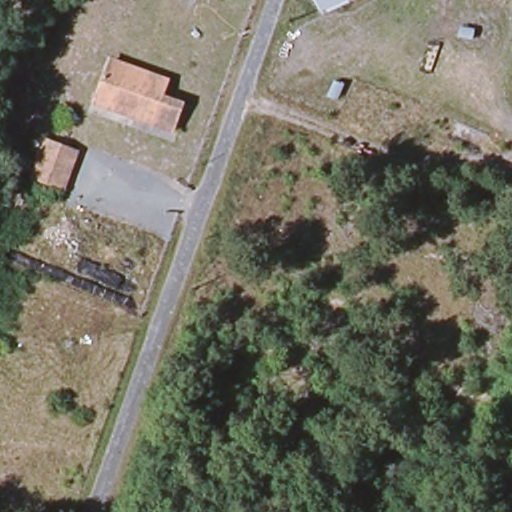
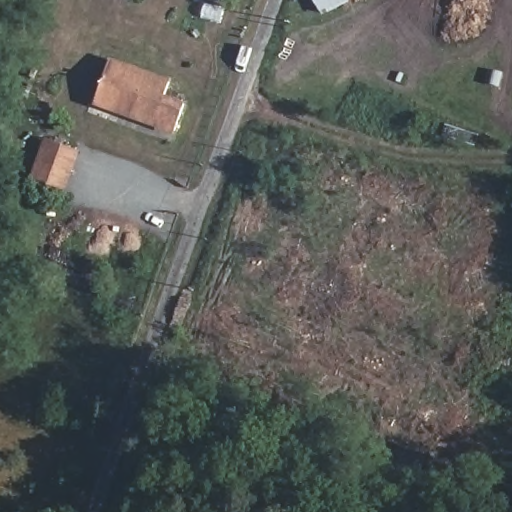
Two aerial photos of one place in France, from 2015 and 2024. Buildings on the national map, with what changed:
unchanged [(350,0),(316,15),(310,0),(350,0)]
unchanged [(91,111),(101,70),(135,79),(135,76),(164,84),(161,102),(180,109),(171,134),(91,111)]
unchanged [(30,185),(44,145),(73,154),(60,194),(30,185)]

